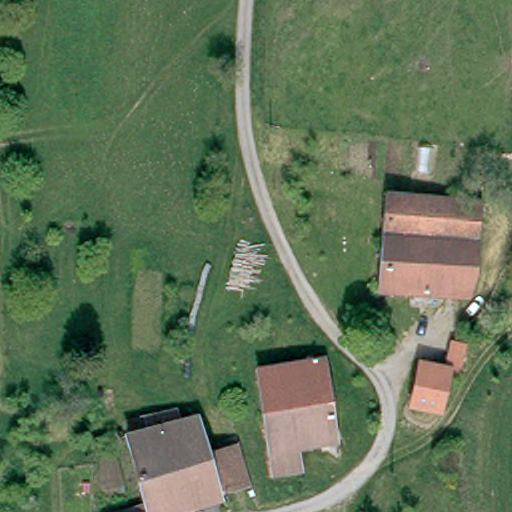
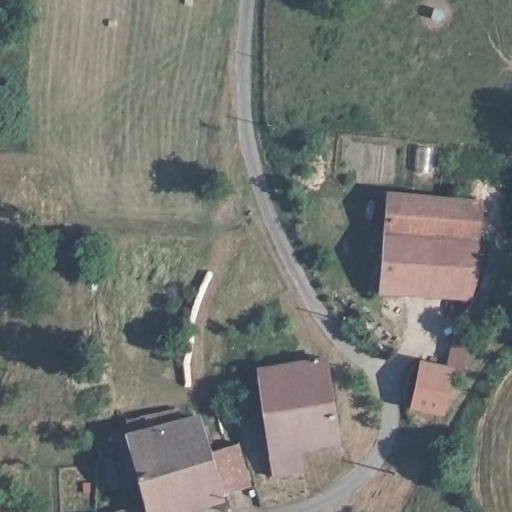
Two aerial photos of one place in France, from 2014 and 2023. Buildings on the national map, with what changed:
unchanged [(381,293),(388,196),(477,202),(466,299),(381,293)]
unchanged [(418,401),(423,356),(451,358),(452,340),(463,340),(461,366),(453,365),(450,400),(445,405),(436,403),(432,418),(421,417),(423,402),(418,401)]
unchanged [(320,362),(333,446),(295,455),(297,476),(269,481),(253,373),(320,362)]
unchanged [(117,507),(146,497),(145,490),(132,431),(152,425),(150,415),(181,405),(184,415),(202,411),(213,451),(225,493),(160,512),(118,512),(117,507)]
unchanged [(237,443),(250,486),(225,493),(213,451),(237,443)]

